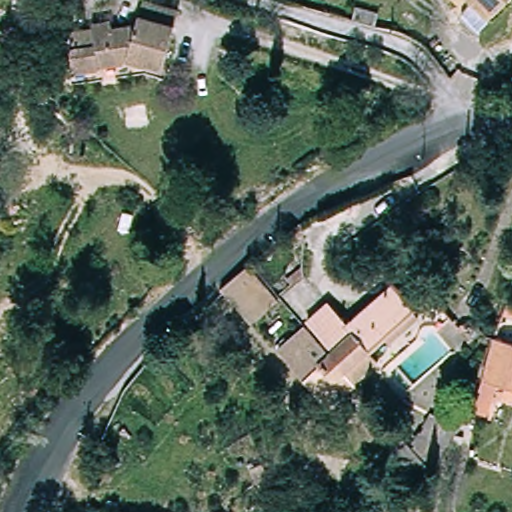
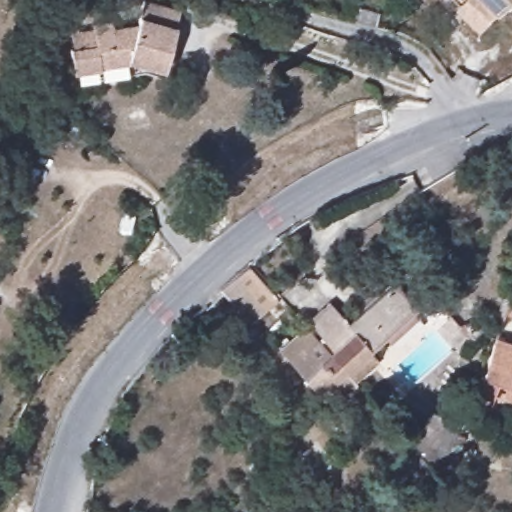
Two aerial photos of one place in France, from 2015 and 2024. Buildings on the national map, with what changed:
unchanged [(475,20),(455,0),(494,0),(475,20)]
unchanged [(112,25),(112,35),(135,35),(142,10),(176,20),(163,81),(130,71),(128,78),(100,73),(98,77),(75,77),(75,48),(74,32),(95,33),(96,26),(112,25)]
unchanged [(249,324),(236,310),(220,292),(245,268),(274,301),(249,324)]
unchanged [(304,329),(302,326),(320,311),(303,292),(313,283),(347,321),(392,280),(417,308),(412,313),(422,325),(394,350),(383,339),(368,352),(379,364),(355,385),(319,345),(304,329)]
unchanged [(344,395),(338,388),(323,401),(279,352),(304,329),(319,345),(355,385),(344,395)]
unchanged [(497,397),(497,396),(489,394),(482,413),(468,408),(478,378),(475,377),(489,337),(512,343),(512,401),(497,397)]
unchanged [(426,407),(455,422),(436,476),(429,468),(404,441),(426,407)]

